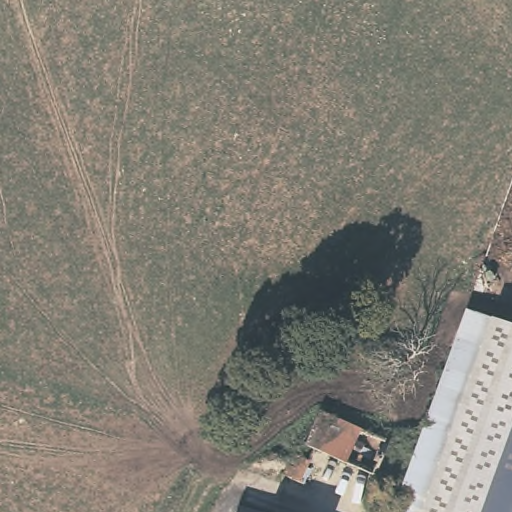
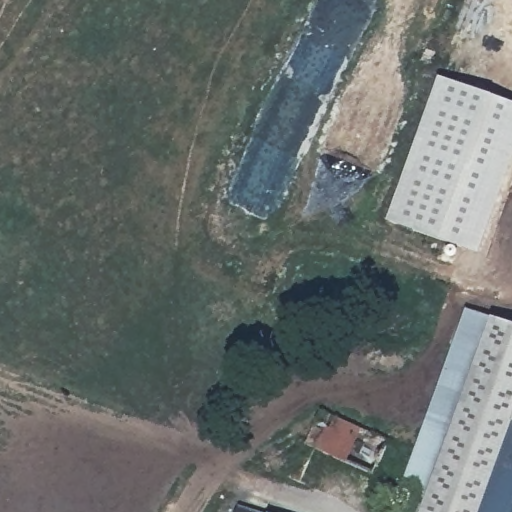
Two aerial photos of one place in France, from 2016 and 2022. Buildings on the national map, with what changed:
new [(450,81),(512,104),(512,136),(469,250),(396,222),(450,81)]
unchanged [(467,312),(512,329),(512,417),(510,425),(477,512),(395,512),(392,511),(467,312)]
unchanged [(407,450),(393,487),(307,451),(294,485),(278,480),(295,436),(306,442),(317,413),(407,450)]
unchanged [(510,425),(512,417),(512,425),(510,425)]
unchanged [(512,425),(512,512),(477,512),(510,425),(512,425)]
unchanged [(233,512),(235,507),(250,512),(233,512)]

